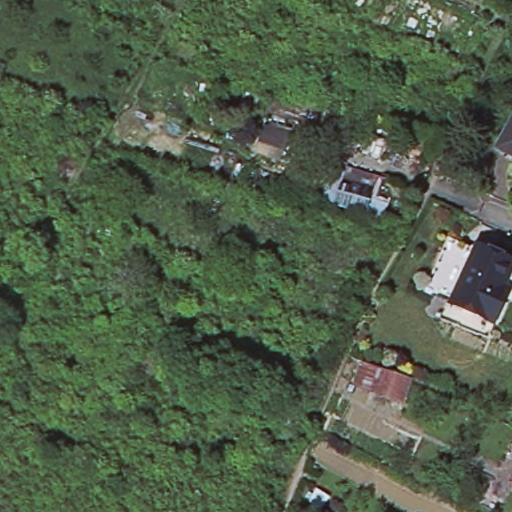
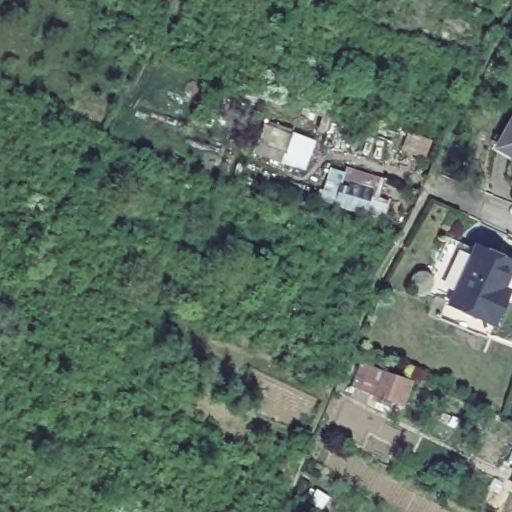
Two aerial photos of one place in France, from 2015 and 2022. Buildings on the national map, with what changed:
unchanged [(315,135),(300,169),(248,150),(261,121),(315,135)]
unchanged [(512,157),(498,150),(512,123),(512,157)]
unchanged [(343,174),(346,166),(381,175),(378,196),(389,198),(385,215),(318,200),(326,171),(343,174)]
unchanged [(473,245),(510,261),(484,318),(447,302),(473,245)]
unchanged [(381,366),(415,378),(406,408),(370,395),(346,385),(360,357),(381,366)]

